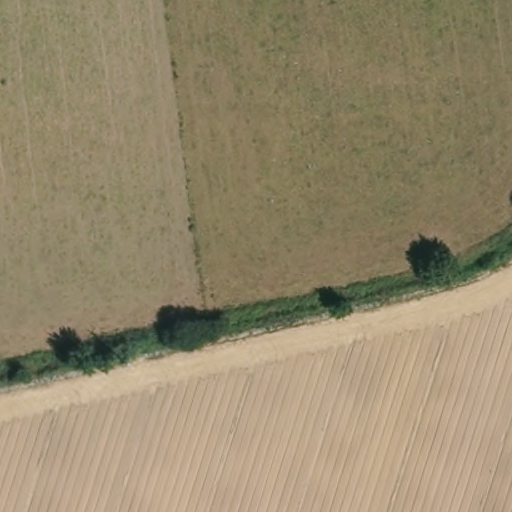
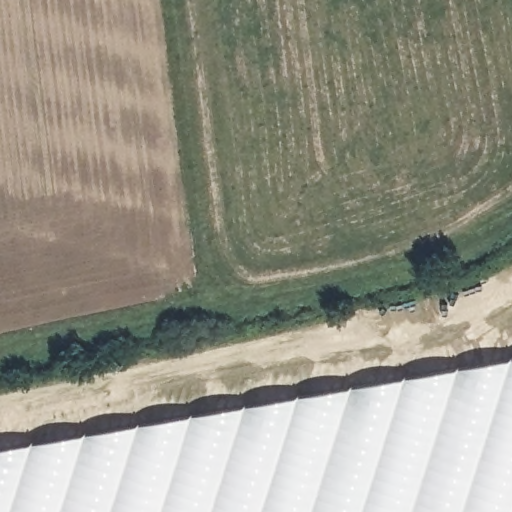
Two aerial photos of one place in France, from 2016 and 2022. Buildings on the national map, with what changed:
new [(0,512),(0,449),(512,359),(512,512),(0,512)]

